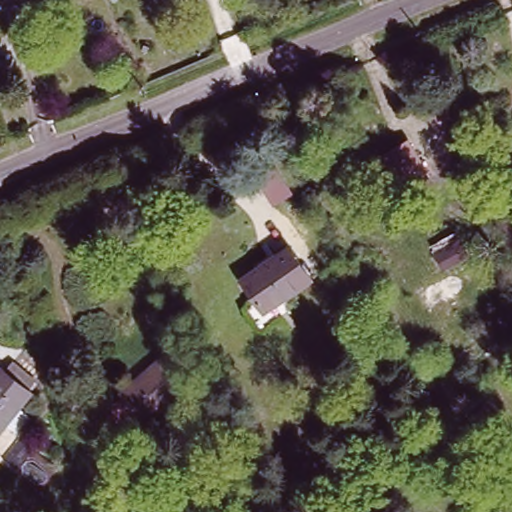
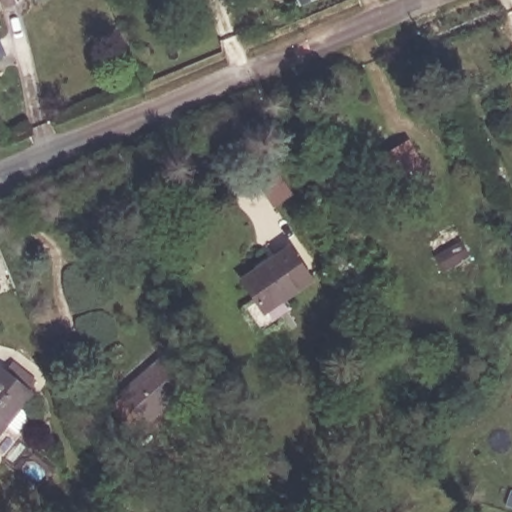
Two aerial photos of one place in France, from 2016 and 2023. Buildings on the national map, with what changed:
unchanged [(425,170),(405,182),(387,152),(406,140),(425,170)]
unchanged [(463,254),(440,267),(432,254),(455,240),(463,254)]
unchanged [(315,276),(263,310),(245,282),(295,248),(315,276)]
unchanged [(191,381),(139,427),(120,406),(134,393),(130,389),(168,355),(191,381)]
unchanged [(33,383),(26,393),(0,428),(0,372),(2,373),(10,364),(33,383)]

